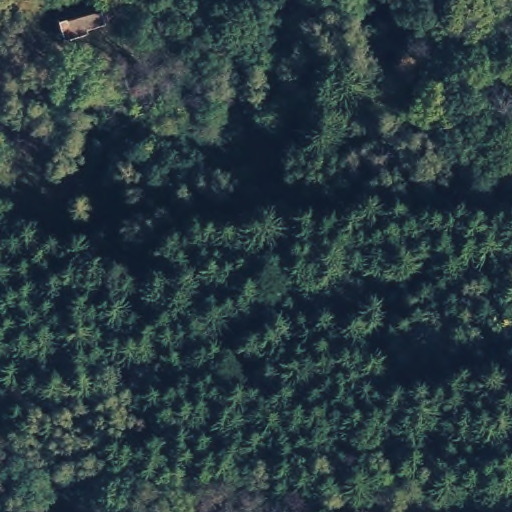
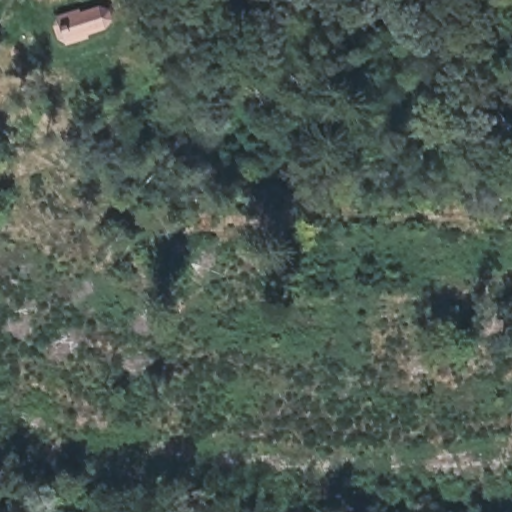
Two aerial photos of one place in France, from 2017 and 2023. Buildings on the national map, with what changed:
unchanged [(102,0),(113,30),(59,42),(54,15),(88,0),(102,0)]

